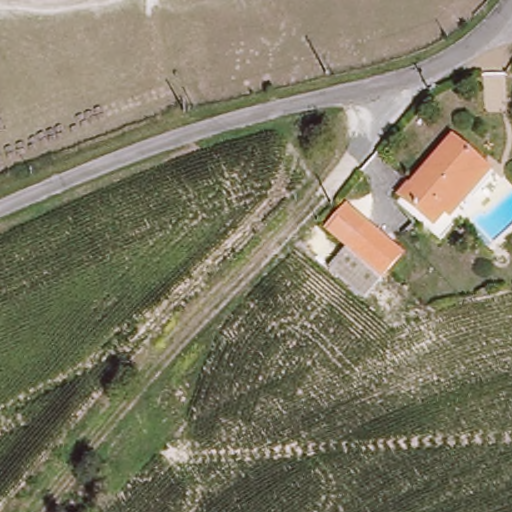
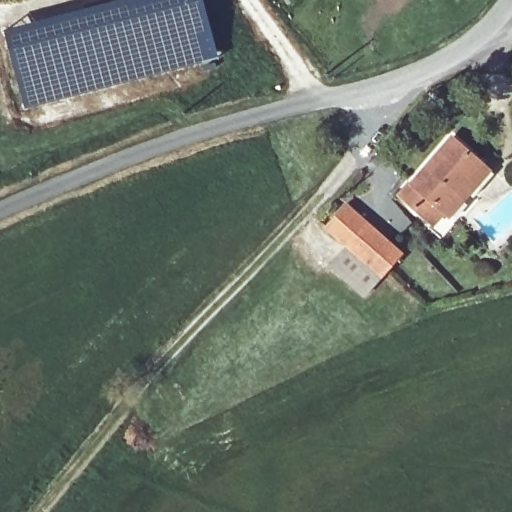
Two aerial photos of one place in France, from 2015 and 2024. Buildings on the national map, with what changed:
new [(4,30),(120,0),(203,0),(219,56),(25,108),(4,30)]
unchanged [(442,213),(436,207),(427,219),(400,196),(410,184),(406,181),(443,137),(474,162),(485,172),(465,196),(460,192),(457,196),(442,213)]
unchanged [(350,247),(338,237),(356,216),(368,226),(405,256),(369,297),(332,268),(350,247)]

